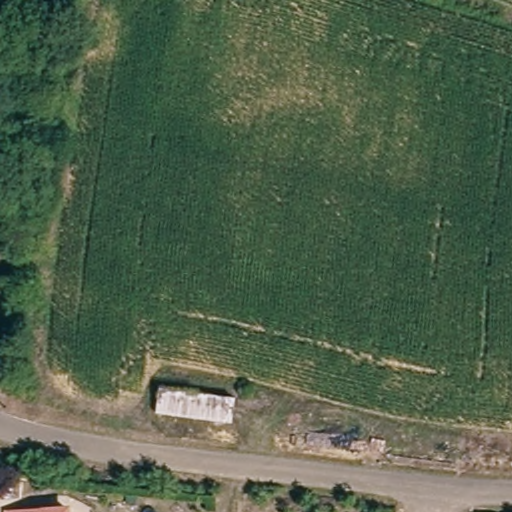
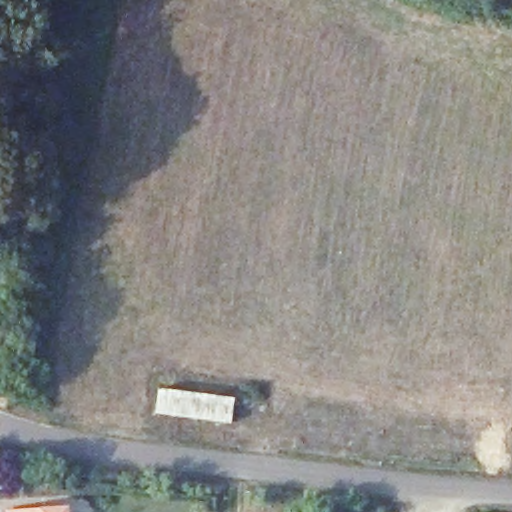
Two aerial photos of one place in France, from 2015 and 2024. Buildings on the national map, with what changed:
unchanged [(164,414),(166,386),(233,394),(230,422),(164,414)]

